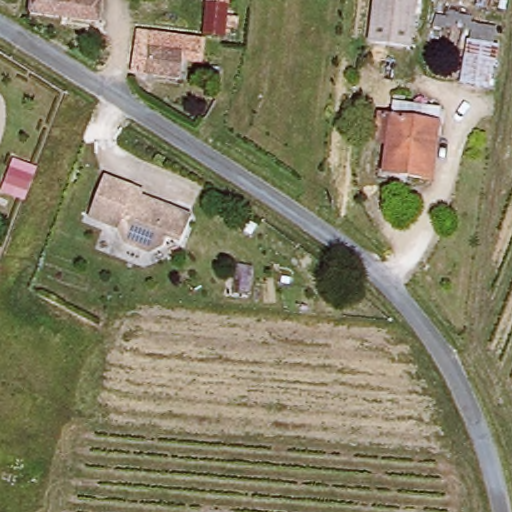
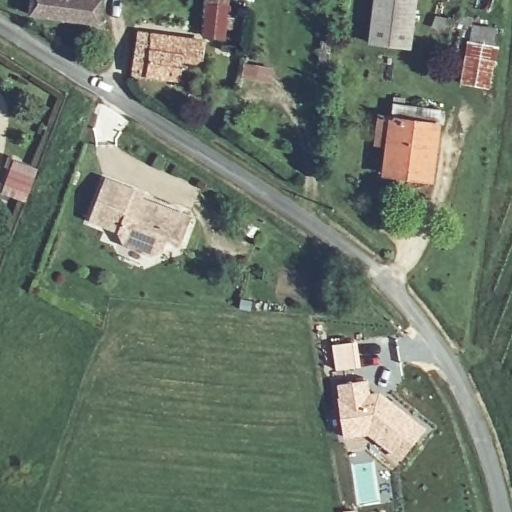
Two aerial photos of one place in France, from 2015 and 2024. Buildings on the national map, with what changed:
unchanged [(35,0),(99,0),(98,20),(33,12),(35,0)]
unchanged [(373,45),(377,0),(418,0),(414,49),(373,45)]
unchanged [(227,10),(225,43),(203,41),(207,6),(227,10)]
unchanged [(154,35),(184,39),(180,83),(146,80),(147,66),(135,65),(138,40),(153,39),(154,35)]
unchanged [(469,44),(500,47),(490,90),(462,82),(469,44)]
unchanged [(434,181),(385,177),(388,146),(375,145),(377,118),(390,119),(391,105),(440,108),(434,181)]
unchanged [(190,251),(176,245),(173,254),(159,259),(134,248),(128,235),(99,223),(115,185),(144,197),(151,200),(148,205),(200,226),(190,251)]
new [(357,340),(361,366),(335,370),(331,344),(357,340)]
new [(368,378),(370,388),(370,391),(380,392),(426,429),(398,461),(367,436),(343,441),(336,383),(368,378)]

